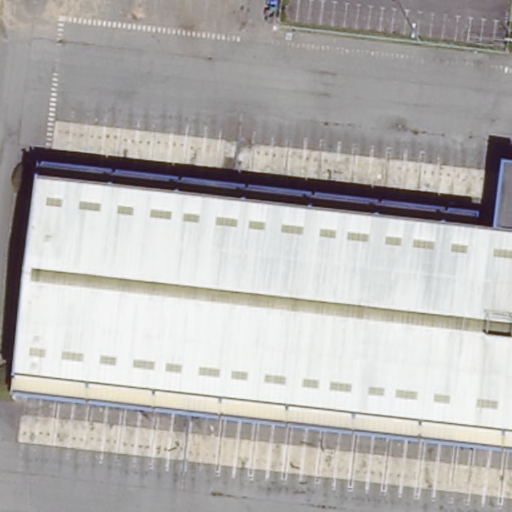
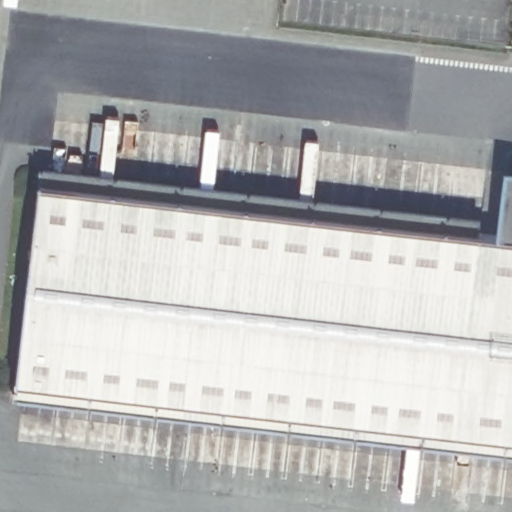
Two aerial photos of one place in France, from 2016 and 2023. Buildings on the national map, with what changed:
unchanged [(22,397),(47,196),(506,247),(512,205),(512,452),(22,397)]

